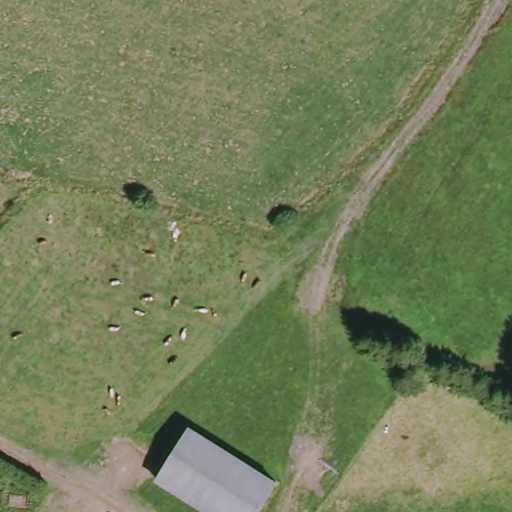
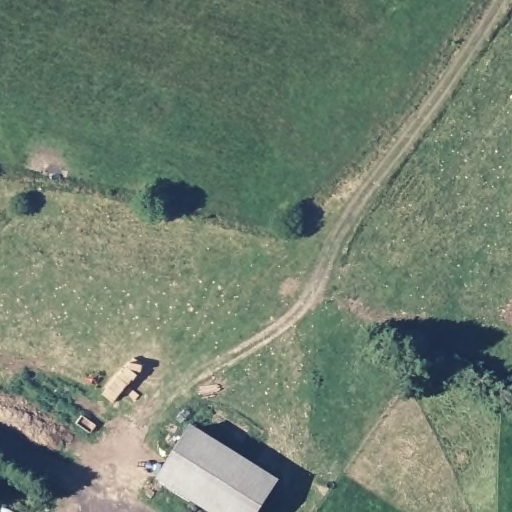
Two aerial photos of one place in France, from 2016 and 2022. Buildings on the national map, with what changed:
unchanged [(262,512),(211,512),(163,480),(198,428),(280,484),(262,512)]

